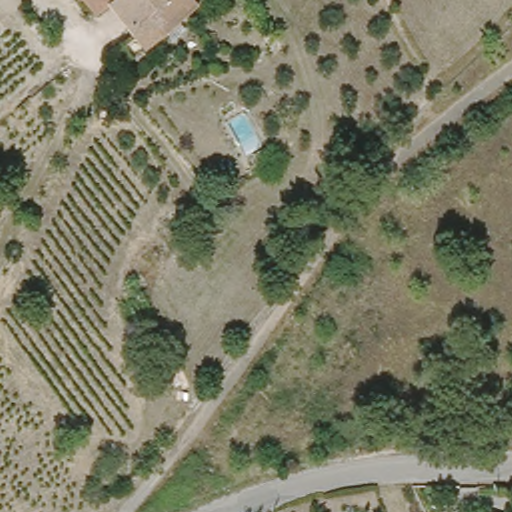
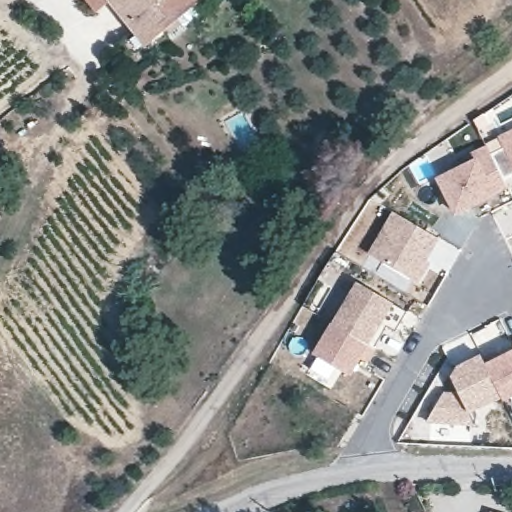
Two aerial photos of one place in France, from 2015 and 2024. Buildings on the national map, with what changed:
unchanged [(99,8),(92,0),(108,0),(99,8)]
unchanged [(137,51),(126,39),(135,31),(110,0),(199,0),(137,51)]
new [(512,130),(512,165),(499,138),(512,130)]
unchanged [(282,149),(271,155),(264,142),(275,136),(282,149)]
new [(455,218),(435,179),(478,158),(476,151),(488,145),(509,189),(455,218)]
new [(368,256),(394,214),(440,240),(427,262),(431,264),(420,285),(368,256)]
new [(315,354),(357,283),(395,306),(406,313),(396,330),(384,324),(352,379),(315,354)]
new [(512,352),(512,399),(505,403),(486,364),(512,352)]
new [(486,364),(503,399),(476,410),(476,426),(427,423),(444,392),(458,392),(451,378),(458,366),(481,354),(486,364)]

